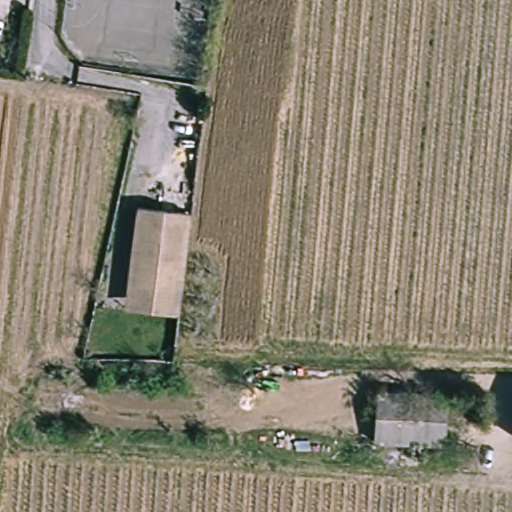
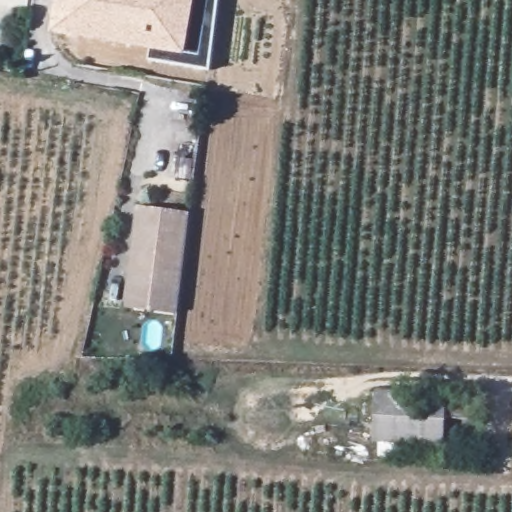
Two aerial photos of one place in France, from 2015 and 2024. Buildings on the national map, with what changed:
new [(208,69),(148,60),(149,51),(48,34),(54,0),(217,0),(208,69)]
unchanged [(141,209),(190,215),(180,291),(130,285),(141,209)]
unchanged [(130,285),(180,291),(177,313),(127,309),(130,285)]
unchanged [(481,416),(447,416),(443,445),(375,441),(378,390),(482,395),(481,416)]

